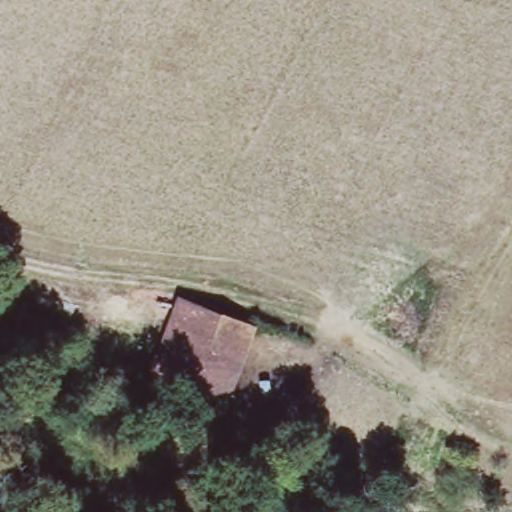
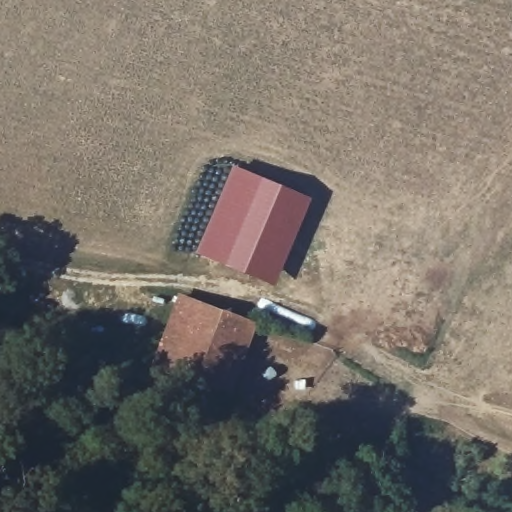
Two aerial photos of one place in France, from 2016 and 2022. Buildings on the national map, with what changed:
new [(234,167),(298,195),(262,278),(198,251),(234,167)]
new [(298,195),(310,199),(274,283),(262,278),(298,195)]
unchanged [(238,387),(153,356),(180,295),(219,308),(263,326),(238,387)]

